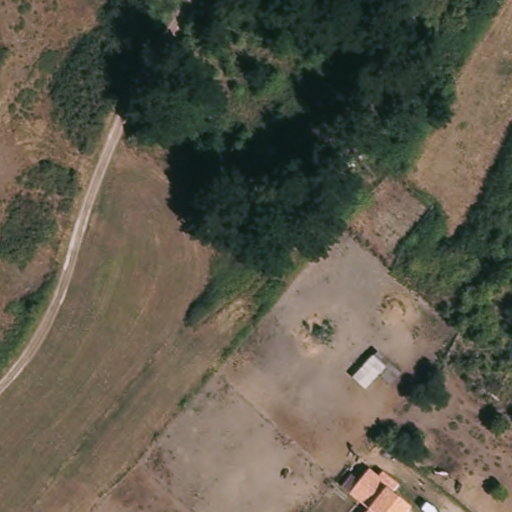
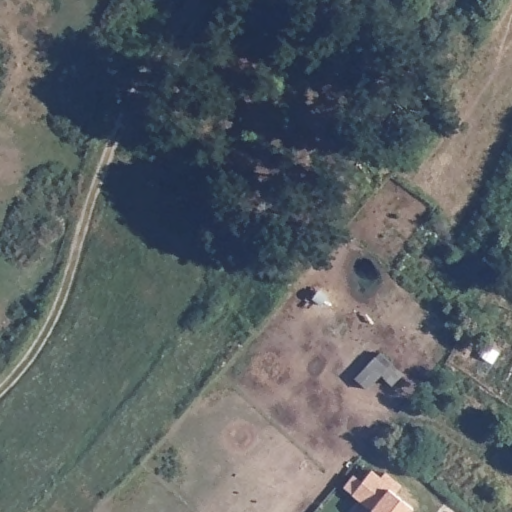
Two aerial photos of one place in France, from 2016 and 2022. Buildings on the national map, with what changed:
unchanged [(372,510),(353,494),(372,470),(381,478),(386,473),(402,485),(396,493),(414,508),(411,512),(370,512),(372,510)]

